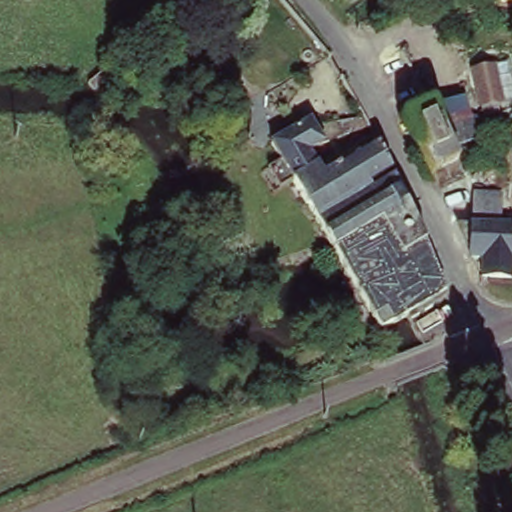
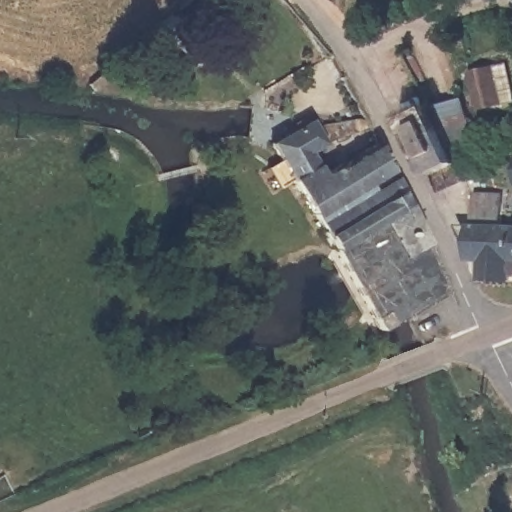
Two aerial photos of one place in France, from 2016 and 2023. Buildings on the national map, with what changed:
unchanged [(116,72),(102,84),(96,78),(111,66),(116,72)]
unchanged [(472,72),(495,67),(502,103),(480,109),(472,72)]
unchanged [(340,257),(274,145),(300,132),(310,125),(323,127),(345,123),(368,120),(377,139),(330,144),(312,155),(324,175),(380,146),(415,224),(340,257)]
unchanged [(440,190),(433,172),(417,134),(440,124),(457,163),(465,182),(440,190)]
unchanged [(468,221),(501,222),(507,222),(512,222),(512,276),(480,276),(480,256),(467,256),(468,221)]
unchanged [(440,385),(452,379),(458,394),(445,400),(440,385)]

